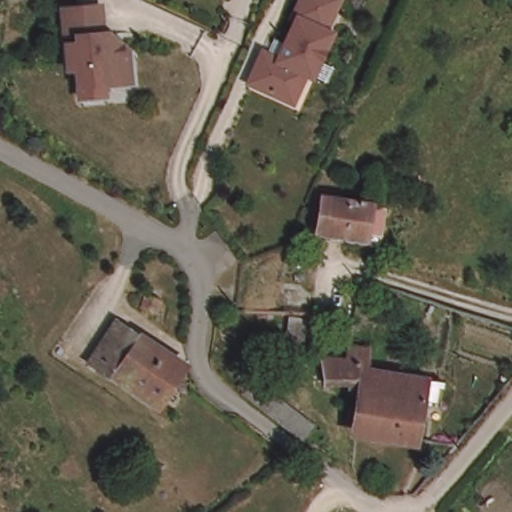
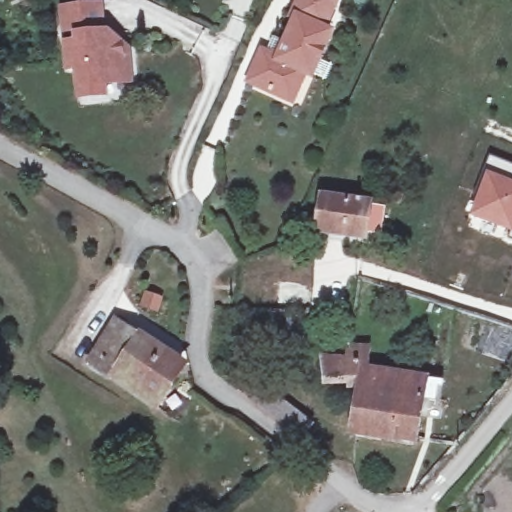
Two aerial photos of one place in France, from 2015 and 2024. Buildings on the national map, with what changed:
unchanged [(313,77),(312,80),(306,77),(293,106),(250,87),(263,57),(279,65),(286,50),(297,24),(293,22),(303,0),(333,0),(339,2),(324,35),(331,37),(319,65),(332,71),(326,84),(313,77)]
unchanged [(118,82),(104,83),(105,94),(80,96),(77,68),(68,69),(63,9),(101,5),(103,35),(114,39),(128,50),(131,81),(118,82)]
new [(487,172),(512,182),(512,237),(472,219),(487,172)]
unchanged [(384,192),(379,211),(371,210),(376,190),(384,192)]
unchanged [(371,210),(366,243),(318,235),(323,202),(371,210)]
unchanged [(147,295),(160,300),(156,310),(143,305),(147,295)]
unchanged [(159,412),(86,361),(115,317),(189,365),(159,412)]
unchanged [(346,355),(348,343),(370,344),(368,365),(439,375),(437,395),(424,393),(418,433),(357,424),(364,373),(324,375),(321,351),(346,355)]
unchanged [(254,380),(311,425),(301,438),(291,430),(243,394),(254,380)]

